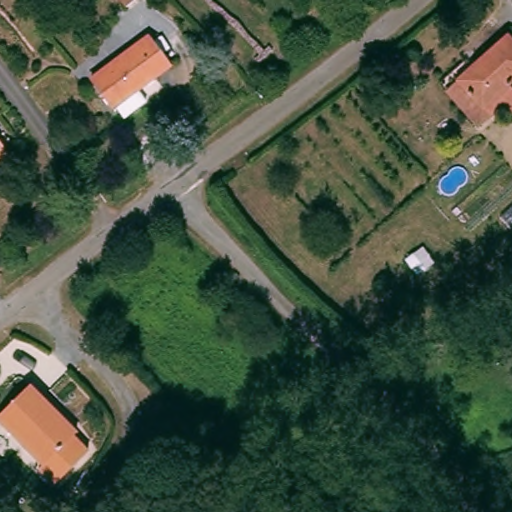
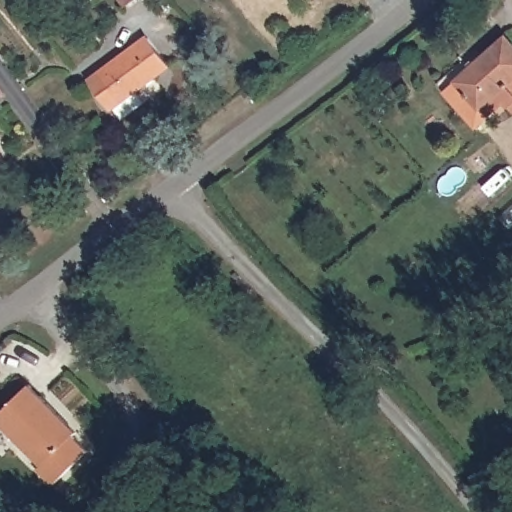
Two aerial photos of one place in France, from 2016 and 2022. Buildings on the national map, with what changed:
unchanged [(466,59),(469,59),(472,59),(475,59),(478,60),(506,36),(512,42),(512,104),(506,109),(503,105),(489,116),(476,128),(437,83),(463,61),(466,59)]
unchanged [(145,40),(166,68),(110,111),(89,82),(145,40)]
unchanged [(1,152),(0,154),(0,151),(1,152)]
unchanged [(22,385),(73,426),(44,463),(0,427),(0,412),(22,385)]

